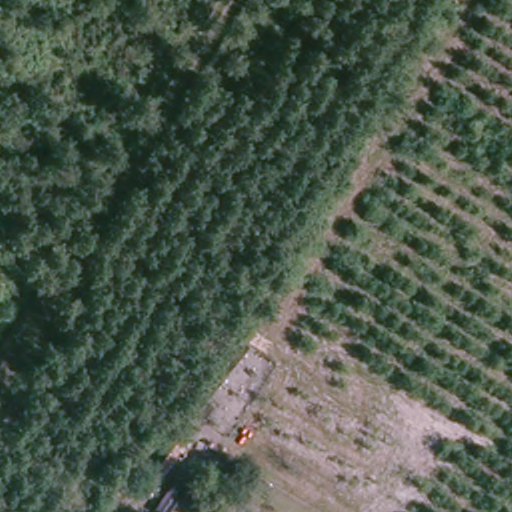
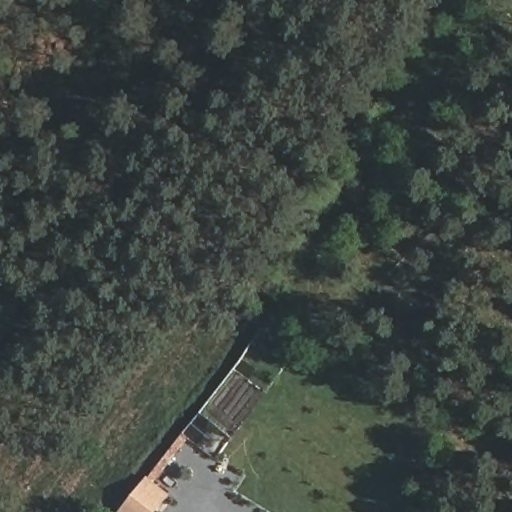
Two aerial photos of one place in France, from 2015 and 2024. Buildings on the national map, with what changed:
new [(118,512),(117,511),(148,473),(170,492),(155,512),(118,512)]

